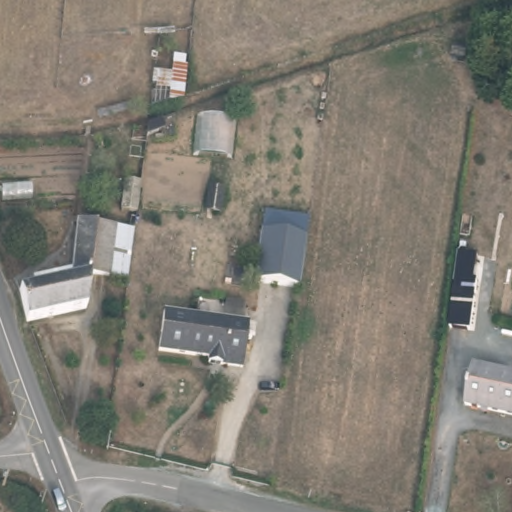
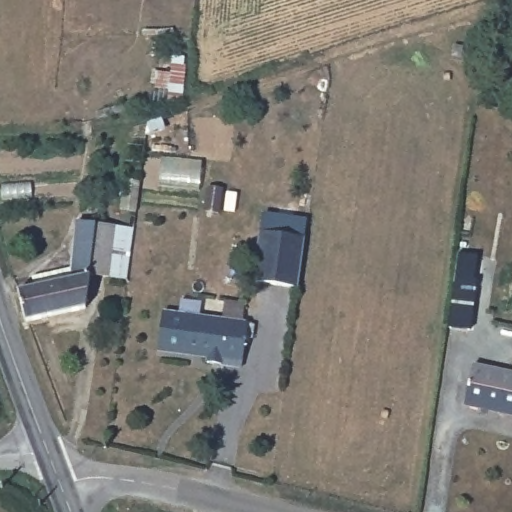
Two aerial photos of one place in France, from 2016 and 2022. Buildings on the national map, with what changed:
unchanged [(299,287),(253,282),(259,230),(264,211),(308,218),(299,287)]
unchanged [(87,273),(84,308),(23,317),(19,287),(34,283),(34,271),(65,267),(70,223),(130,224),(131,224),(123,274),(87,273)]
unchanged [(457,272),(459,254),(476,256),(474,274),(477,274),(471,322),(450,319),(457,272)]
unchanged [(252,327),(246,370),(224,367),(224,360),(209,358),(160,350),(166,313),(252,327)]
unchanged [(469,407),(475,367),(512,373),(512,413),(469,407)]

